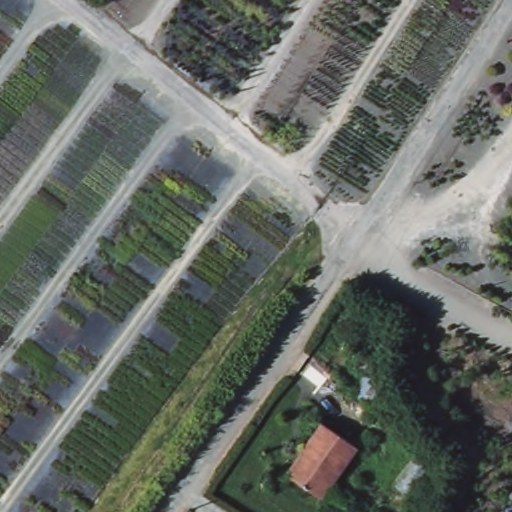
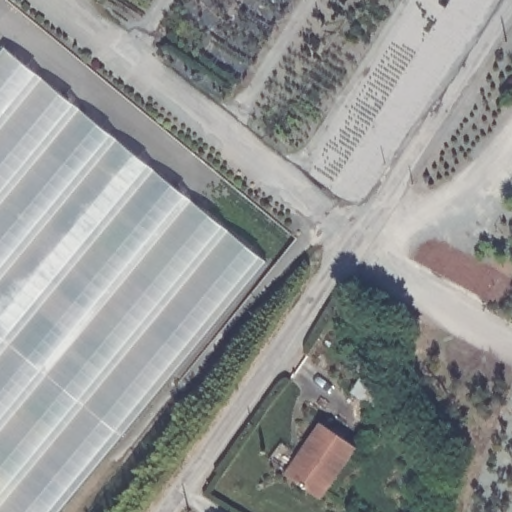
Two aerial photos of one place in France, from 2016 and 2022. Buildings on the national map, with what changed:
new [(59,512),(0,512),(0,53),(4,47),(266,261),(59,512)]
unchanged [(386,364),(396,388),(381,411),(351,392),(362,375),(355,370),(367,353),(386,364)]
unchanged [(320,426),(357,452),(345,471),(308,444),(320,426)]
unchanged [(324,501),(286,475),(308,444),(345,471),(324,501)]

